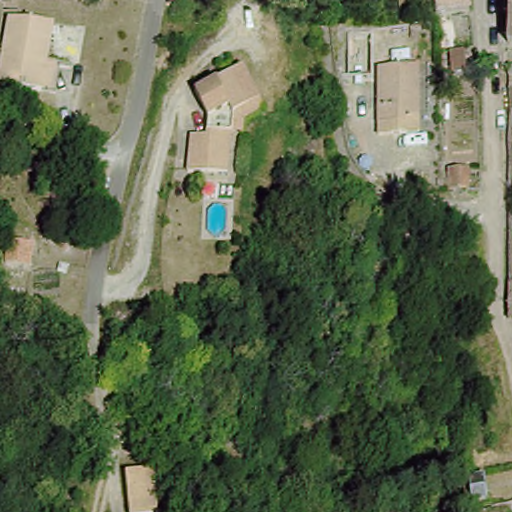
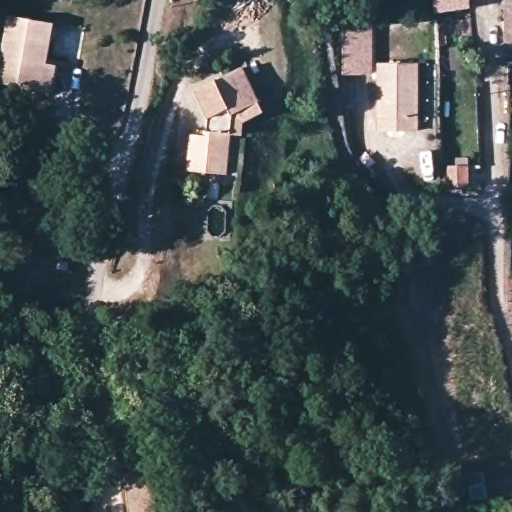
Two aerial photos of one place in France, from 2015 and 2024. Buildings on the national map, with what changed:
unchanged [(434,0),(467,0),(467,11),(435,17),(434,0)]
unchanged [(509,0),(512,0),(512,47),(507,46),(509,0)]
unchanged [(58,96),(47,95),(0,88),(10,21),(57,28),(51,62),(50,69),(61,71),(58,96)]
new [(333,74),(335,23),(373,24),(371,75),(333,74)]
unchanged [(451,68),(450,46),(467,45),(467,67),(451,68)]
unchanged [(422,131),(380,134),(377,69),(419,66),(422,131)]
unchanged [(179,174),(182,137),(197,138),(197,121),(185,94),(232,70),(249,104),(254,115),(238,126),(237,138),(225,138),(223,178),(179,174)]
unchanged [(448,169),(468,169),(470,191),(450,192),(448,169)]
unchanged [(435,230),(405,231),(403,214),(435,213),(435,230)]
unchanged [(5,260),(5,236),(32,237),(30,260),(5,260)]
unchanged [(394,256),(415,254),(421,292),(400,295),(394,256)]
unchanged [(512,315),(511,315),(509,282),(512,282),(512,315)]
unchanged [(127,478),(155,474),(161,512),(132,512),(127,478)]
unchanged [(490,499),(475,500),(472,476),(487,474),(490,499)]

